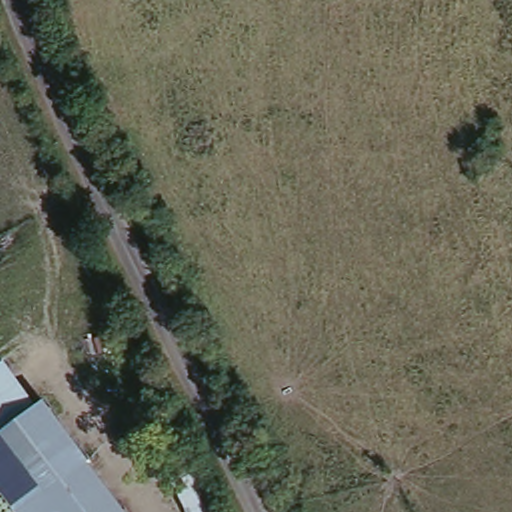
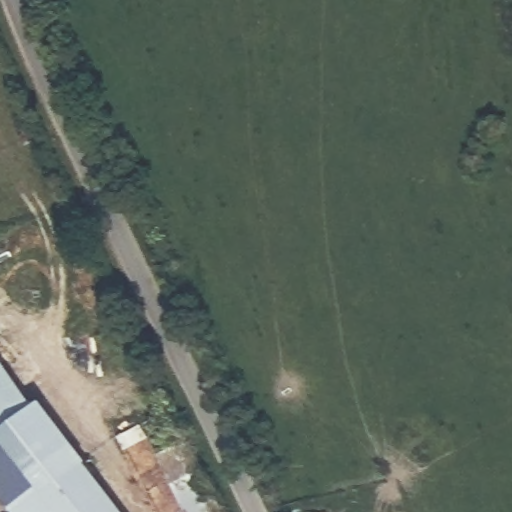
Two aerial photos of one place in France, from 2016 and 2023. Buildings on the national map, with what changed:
unchanged [(34,405),(41,400),(124,512),(14,512),(0,493),(0,361),(1,360),(34,405)]
unchanged [(221,512),(185,512),(156,455),(187,443),(208,484),(221,512)]

